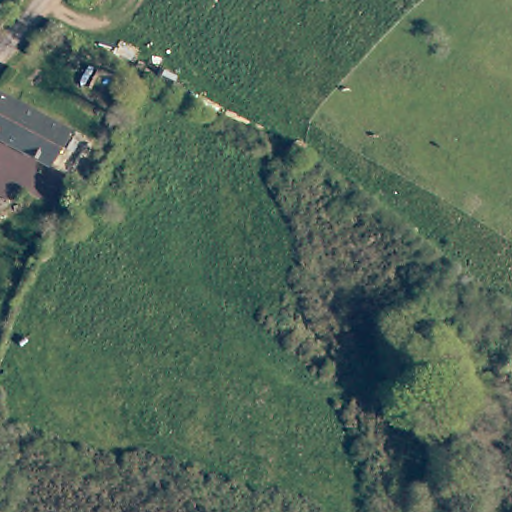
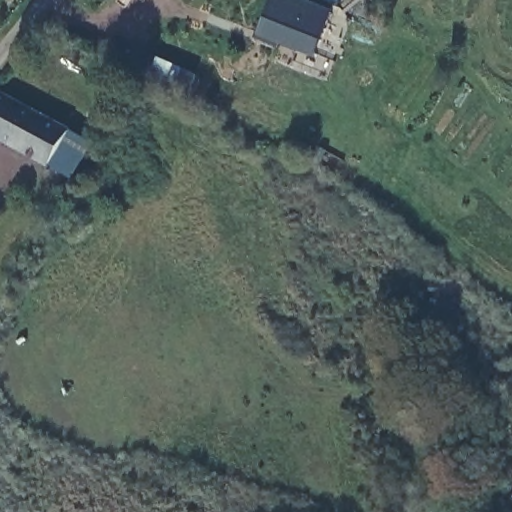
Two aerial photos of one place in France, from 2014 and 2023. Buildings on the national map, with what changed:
new [(336,13),(318,59),(262,37),(277,0),(305,0),(336,13)]
unchanged [(0,141),(0,95),(91,144),(71,180),(0,141)]

